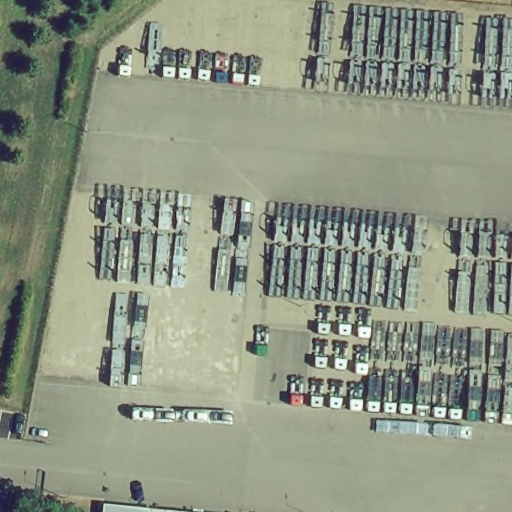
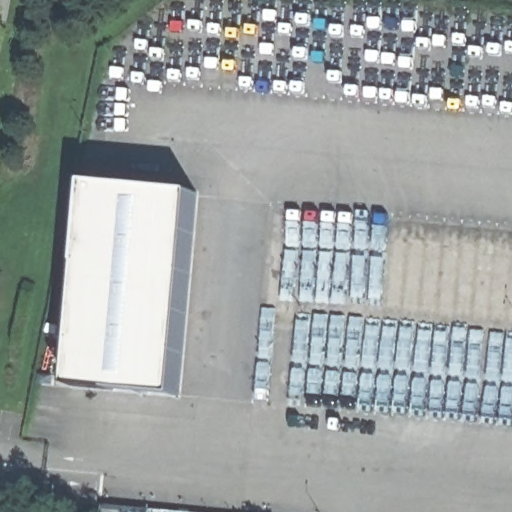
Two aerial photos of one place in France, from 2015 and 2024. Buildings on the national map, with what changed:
new [(72,383),(91,182),(200,193),(180,394),(72,383)]

